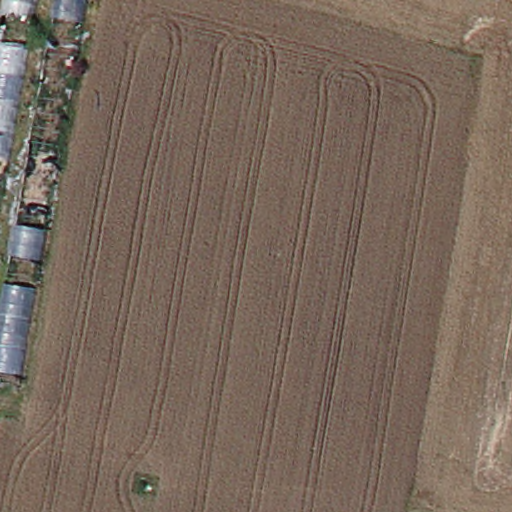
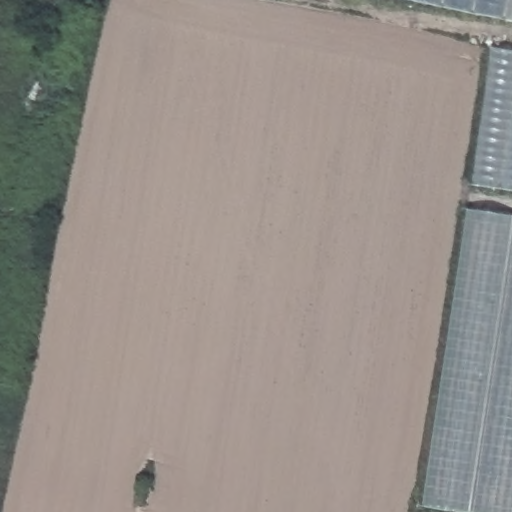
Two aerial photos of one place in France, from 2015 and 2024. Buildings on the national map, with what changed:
unchanged [(0,136),(0,24),(4,0),(39,0),(15,139),(0,136)]
demolished [(90,0),(24,388),(0,384),(0,302),(51,0),(90,0)]
new [(408,0),(512,0),(512,21),(408,0)]
new [(472,185),(493,49),(512,51),(512,191),(472,185)]
new [(420,509),(468,213),(512,219),(512,512),(439,512),(420,509)]

